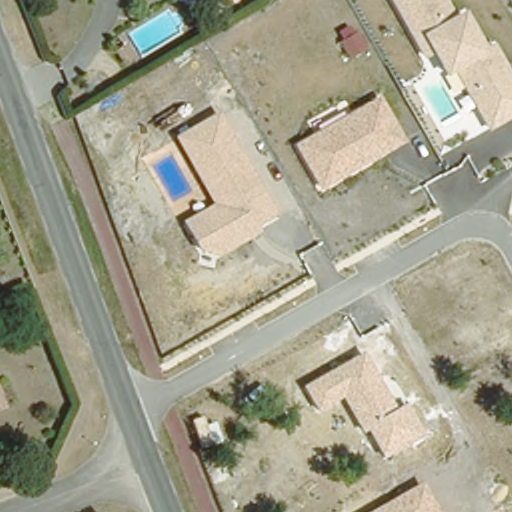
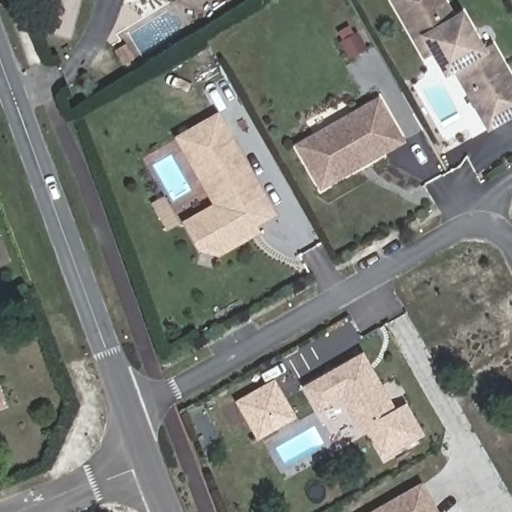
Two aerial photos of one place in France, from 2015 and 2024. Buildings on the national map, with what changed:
unchanged [(462,88),(454,92),(433,55),(423,60),(391,0),(447,0),(456,16),(463,11),(485,47),(494,42),(512,75),(512,117),(487,132),(462,88)]
unchanged [(319,191),(294,145),(318,130),(316,126),(342,112),(346,116),(378,97),(403,142),(319,191)]
unchanged [(256,225),(261,234),(216,258),(196,245),(183,221),(212,204),(176,137),(217,113),(276,214),(256,225)]
unchanged [(396,407),(407,400),(425,435),(382,460),(366,431),(362,434),(342,398),(317,413),(303,384),(363,350),(396,407)]
unchanged [(8,395),(0,398),(0,375),(8,395)]
new [(257,440),(235,401),(274,378),(296,418),(257,440)]
unchanged [(439,512),(373,512),(422,483),(439,512)]

